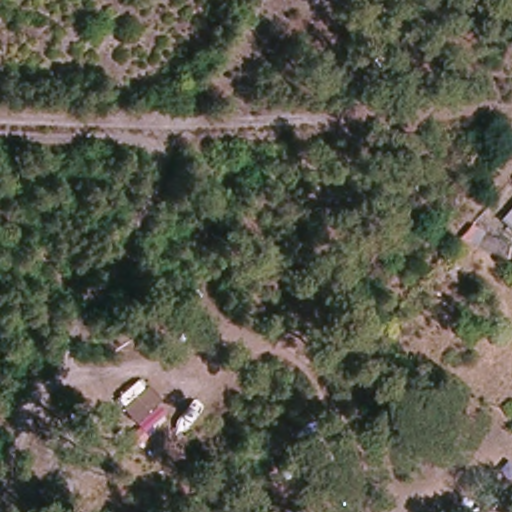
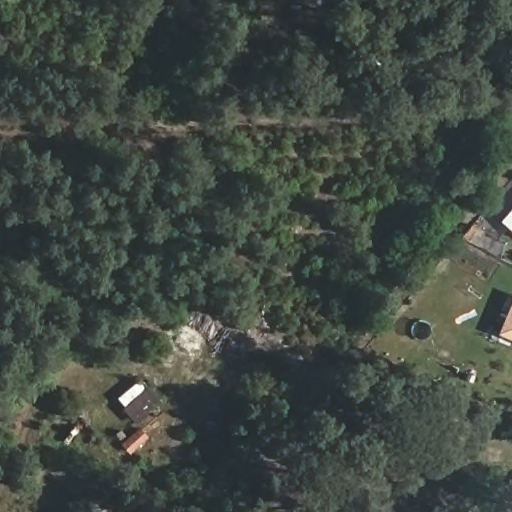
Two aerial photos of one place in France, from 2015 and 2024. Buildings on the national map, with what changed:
unchanged [(503,222),(512,211),(512,230),(503,222)]
new [(498,334),(512,302),(512,340),(498,334)]

